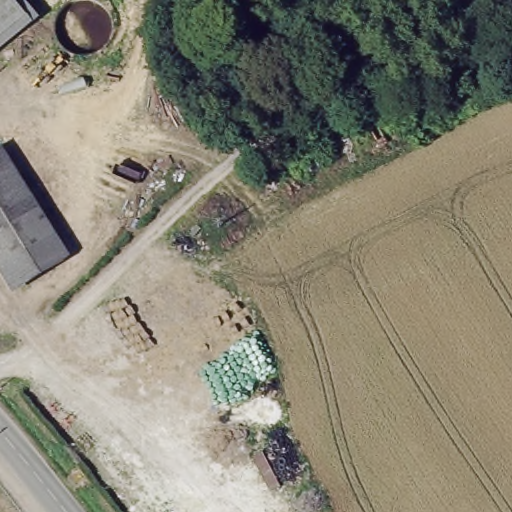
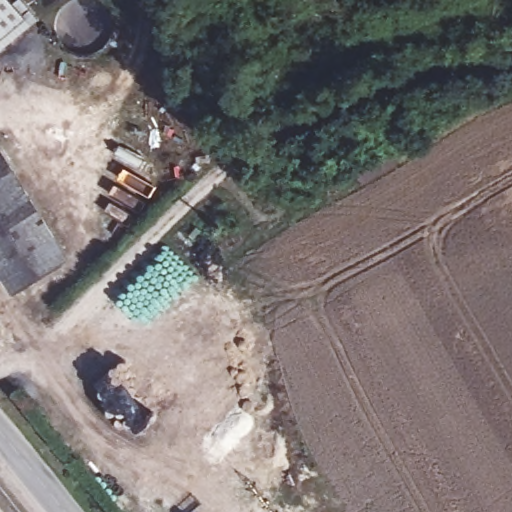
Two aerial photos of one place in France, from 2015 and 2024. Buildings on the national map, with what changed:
unchanged [(14,2),(18,0),(25,0),(40,20),(33,25),(0,52),(0,0),(12,0),(14,2)]
unchanged [(24,279),(0,241),(0,157),(63,254),(24,279)]

